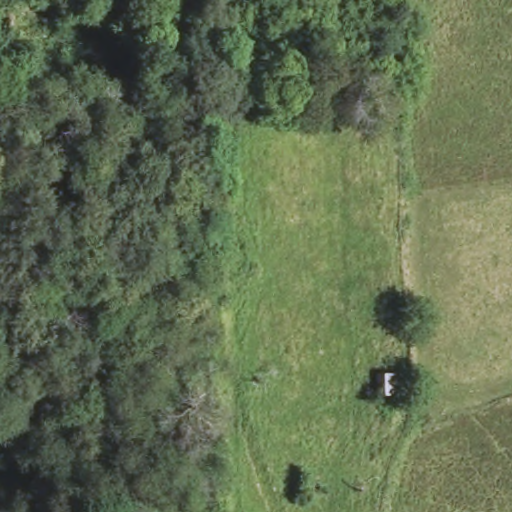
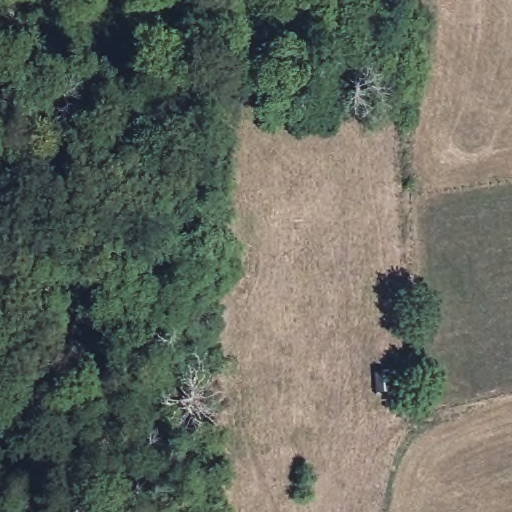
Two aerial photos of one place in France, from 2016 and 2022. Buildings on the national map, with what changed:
unchanged [(395,401),(375,396),(381,368),(403,369),(395,401)]

